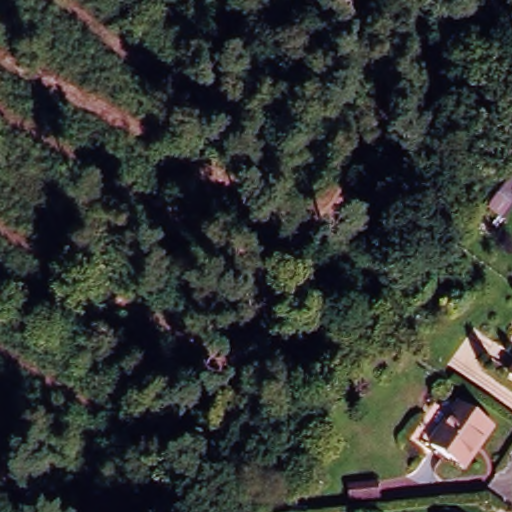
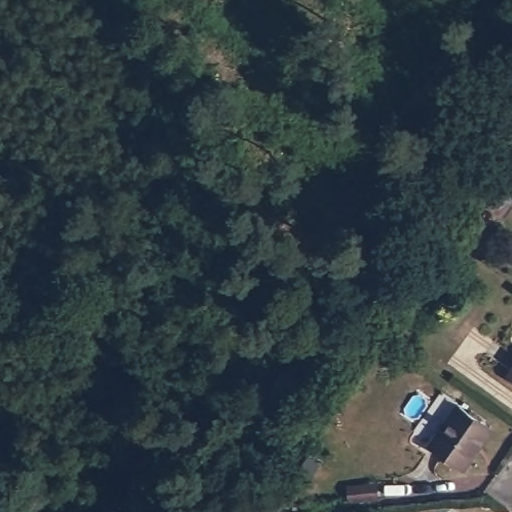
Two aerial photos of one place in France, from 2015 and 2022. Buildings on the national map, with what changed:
unchanged [(457,405),(489,426),(460,466),(429,444),(457,405)]
unchanged [(398,489),(428,487),(429,502),(399,504),(398,489)]

